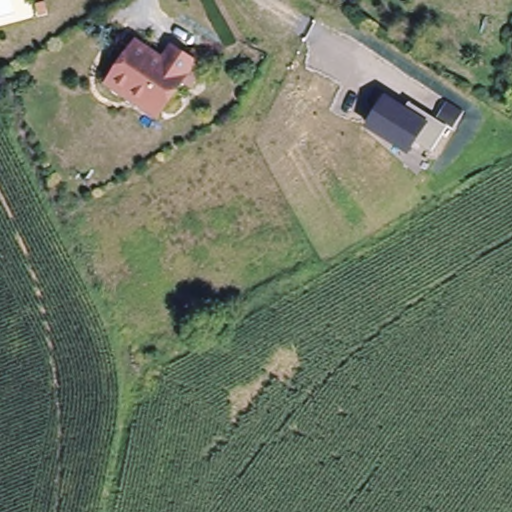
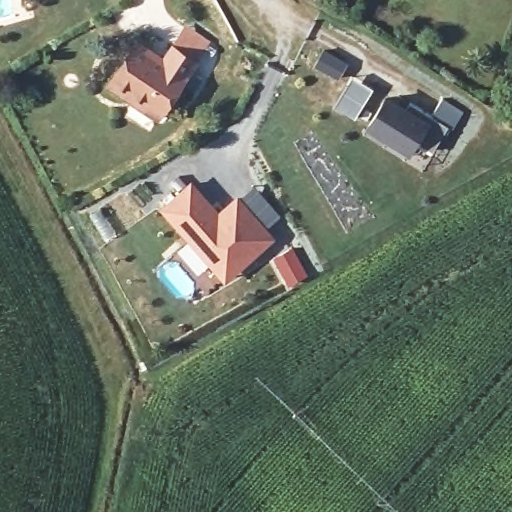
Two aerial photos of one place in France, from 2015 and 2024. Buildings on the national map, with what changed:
unchanged [(126,99),(106,85),(137,42),(163,59),(171,45),(195,62),(160,114),(156,120),(126,99)]
unchanged [(386,94),(407,107),(409,103),(436,119),(445,102),(463,112),(453,131),(447,127),(433,151),(418,142),(410,155),(366,127),(386,94)]
new [(227,283),(160,211),(189,185),(217,215),(237,196),(273,239),(227,283)]

